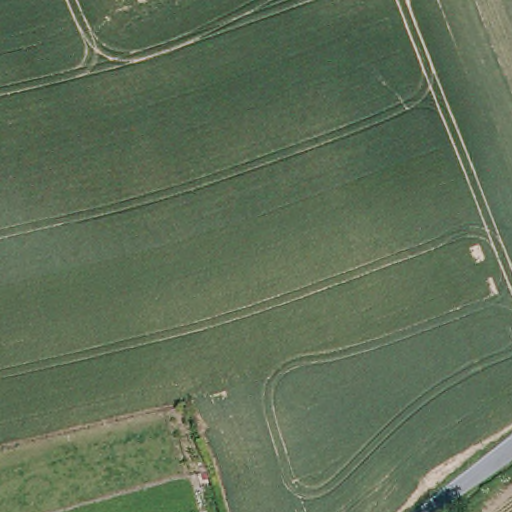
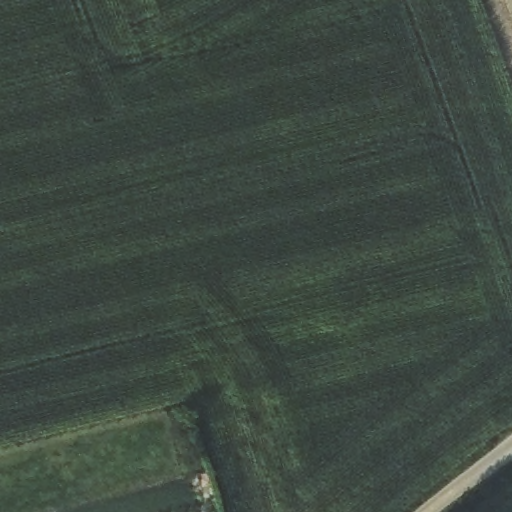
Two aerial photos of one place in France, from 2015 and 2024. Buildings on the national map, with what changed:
[]

